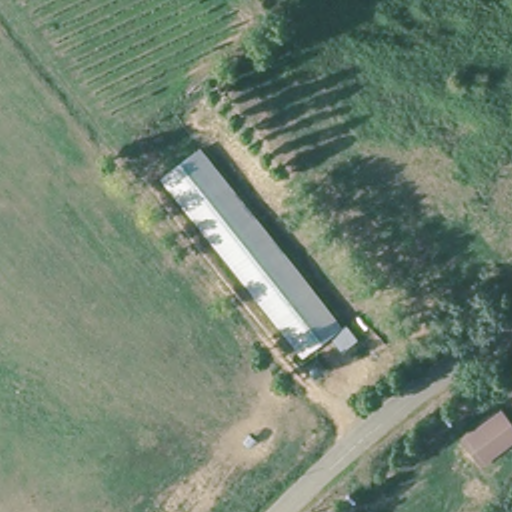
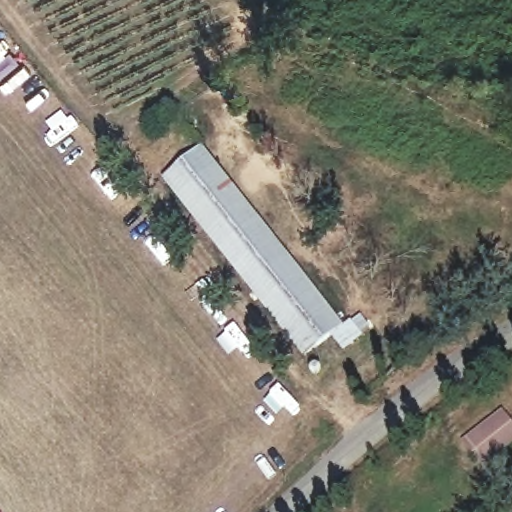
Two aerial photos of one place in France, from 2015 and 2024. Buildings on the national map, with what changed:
unchanged [(356,333),(340,319),(312,344),(151,184),(189,151),(347,308),(352,304),(368,321),(356,333)]
unchanged [(512,422),(512,445),(482,467),(462,441),(503,410),(512,422)]

